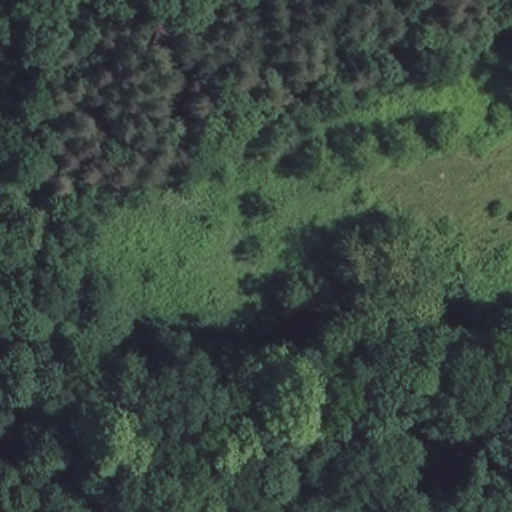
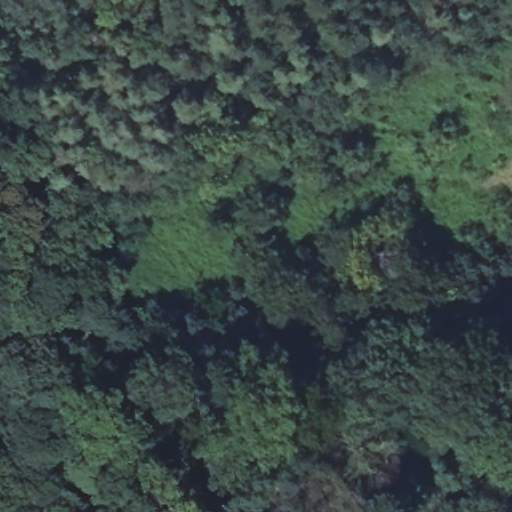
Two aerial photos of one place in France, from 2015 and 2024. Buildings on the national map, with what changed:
[]

